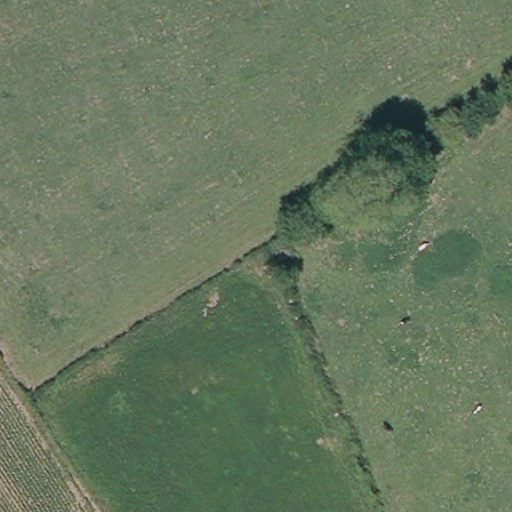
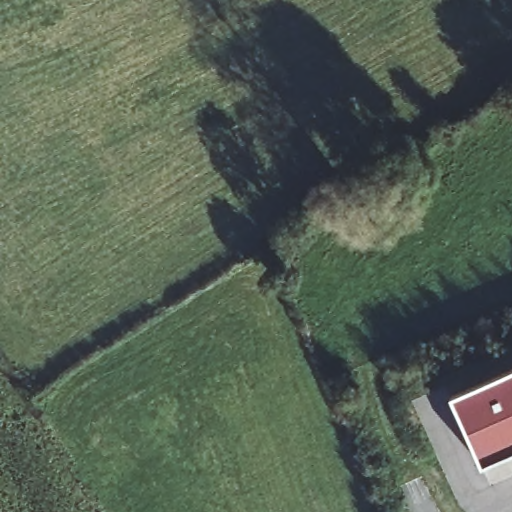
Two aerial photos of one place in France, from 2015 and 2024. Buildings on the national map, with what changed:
new [(512,368),(512,444),(480,457),(452,397),(512,368)]

